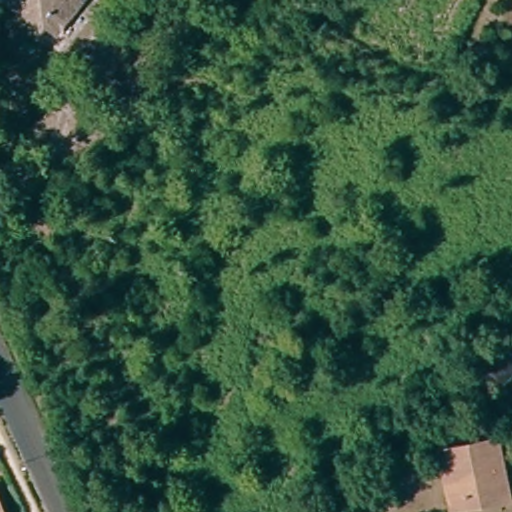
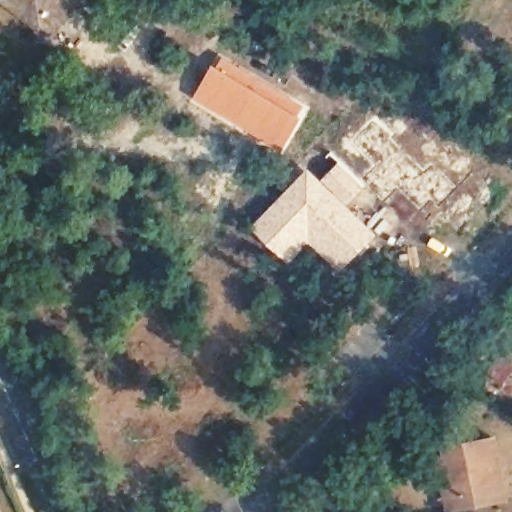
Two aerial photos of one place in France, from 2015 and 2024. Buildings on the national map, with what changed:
unchanged [(9,13),(0,5),(0,0),(73,0),(46,34),(33,24),(30,30),(9,13)]
new [(220,54),(310,107),(282,153),(191,98),(220,54)]
new [(319,179),(338,160),(365,186),(347,205),(376,234),(339,274),(308,246),(289,265),(249,226),(307,167),(319,179)]
unchanged [(436,459),(443,458),(441,449),(454,447),(494,440),(494,444),(501,490),(503,502),(460,510),(448,512),(445,512),(442,502),(436,459)]

